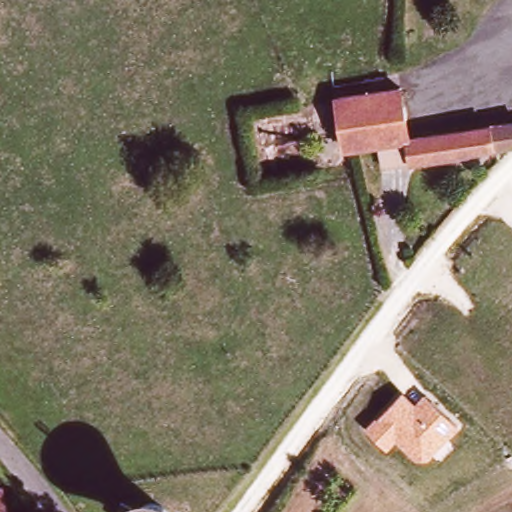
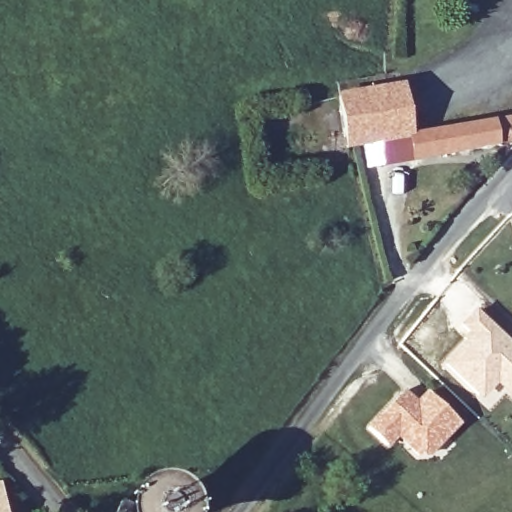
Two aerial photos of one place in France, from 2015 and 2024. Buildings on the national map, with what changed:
unchanged [(346,153),(340,99),(389,92),(401,91),(409,141),(410,143),(346,153)]
unchanged [(412,164),(410,143),(409,141),(495,128),(493,117),(512,114),(512,151),(451,160),(412,164)]
new [(494,378),(476,396),(445,364),(466,342),(463,340),(469,334),(472,336),(461,326),(474,313),(512,350),(512,395),(507,390),(494,378)]
unchanged [(460,424),(430,458),(418,458),(397,439),(390,447),(368,428),(402,390),(416,402),(425,393),(460,424)]
unchanged [(0,512),(0,497),(1,497),(3,512),(0,512)]

